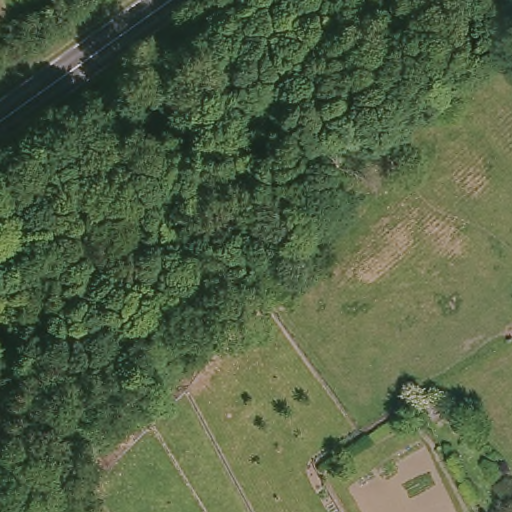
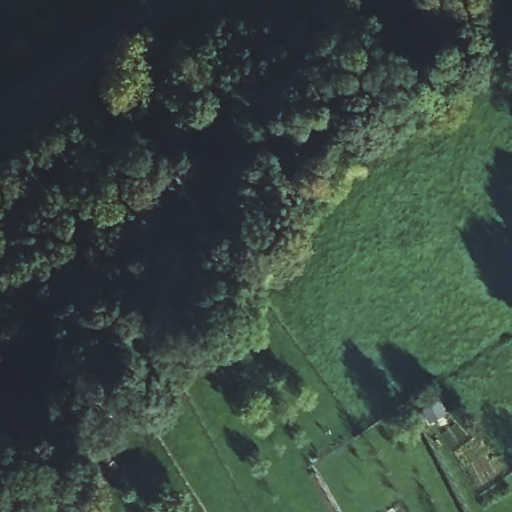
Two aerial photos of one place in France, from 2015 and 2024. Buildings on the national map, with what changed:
unchanged [(237,95),(244,106),(252,102),(258,111),(235,129),(230,119),(233,117),(225,103),(237,95)]

